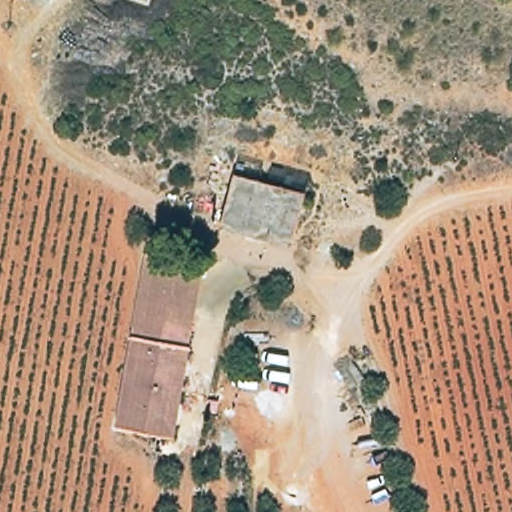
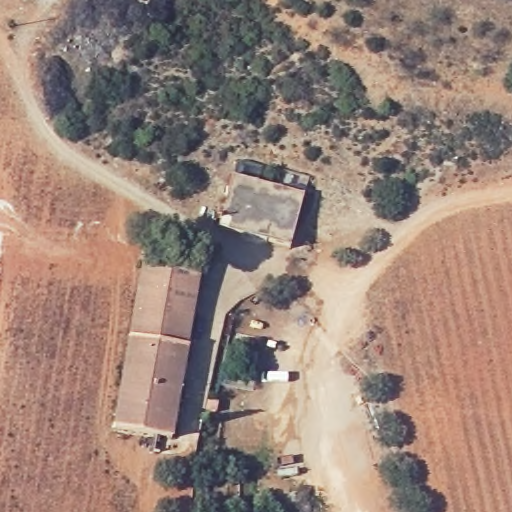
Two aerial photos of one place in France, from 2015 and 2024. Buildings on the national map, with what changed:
unchanged [(228,166),(302,186),(287,239),(217,222),(228,166)]
unchanged [(200,254),(177,430),(162,428),(117,422),(142,244),(177,250),(200,254)]

